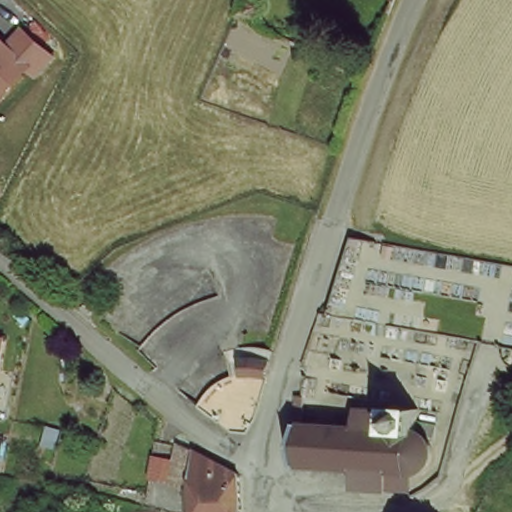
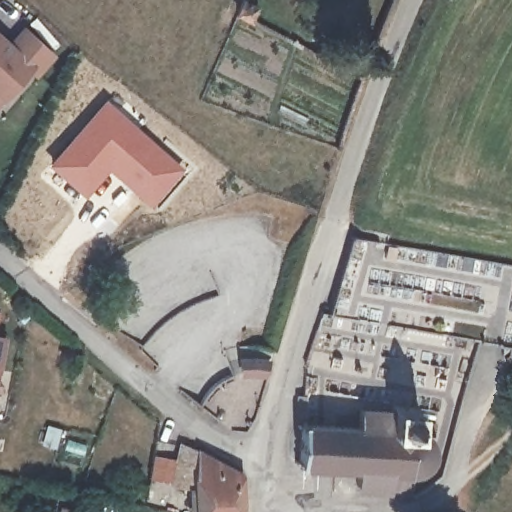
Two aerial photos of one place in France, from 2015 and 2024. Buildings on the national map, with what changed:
unchanged [(248,0),(260,0),(269,5),(259,30),(238,22),(248,0)]
unchanged [(25,27),(57,59),(33,84),(27,78),(0,105),(0,33),(10,42),(25,27)]
new [(106,97),(186,169),(148,207),(108,171),(83,196),(48,164),(106,97)]
unchanged [(0,366),(0,346),(5,347),(0,366)]
unchanged [(248,364),(233,362),(233,352),(243,350),(256,350),(253,366),(248,364)]
unchanged [(303,432),(355,436),(356,421),(391,422),(391,417),(411,417),(411,428),(433,430),(433,440),(426,441),(431,446),(434,453),(432,460),(429,468),(423,473),(415,480),(409,481),(408,499),(355,496),(356,474),(301,471),(303,432)]
unchanged [(186,497),(172,493),(180,456),(211,467),(239,487),(238,512),(191,512),(186,497)]

